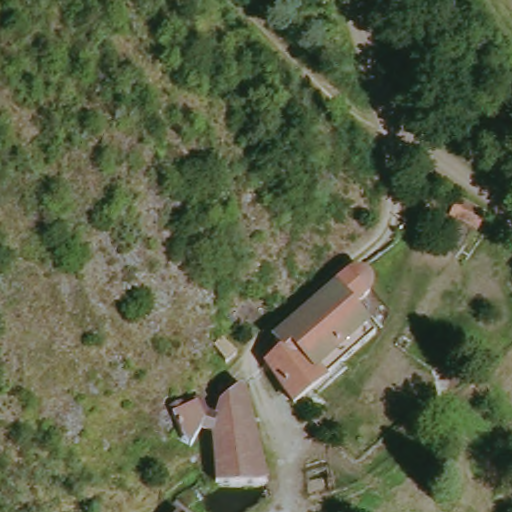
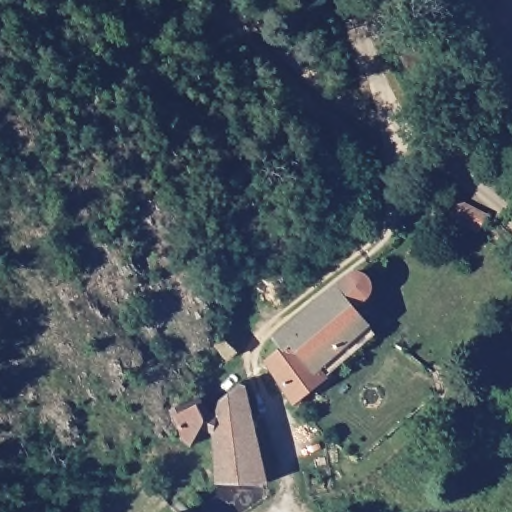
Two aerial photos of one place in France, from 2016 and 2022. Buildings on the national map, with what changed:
unchanged [(455,82),(430,35),(444,26),(471,72),(455,82)]
unchanged [(317,193),(297,179),(307,165),(327,180),(317,193)]
unchanged [(482,204),(474,219),(450,205),(455,190),(482,204)]
unchanged [(300,401),(272,362),(287,348),(282,336),(354,273),(364,271),(370,273),(375,277),(378,285),(376,294),(359,307),(381,336),(300,401)]
unchanged [(225,354),(202,325),(215,317),(235,344),(229,350),(225,354)]
unchanged [(230,400),(245,386),(255,387),(276,480),(254,490),(222,485),(215,435),(230,400)]
unchanged [(186,440),(181,413),(210,423),(200,450),(197,448),(186,440)]

